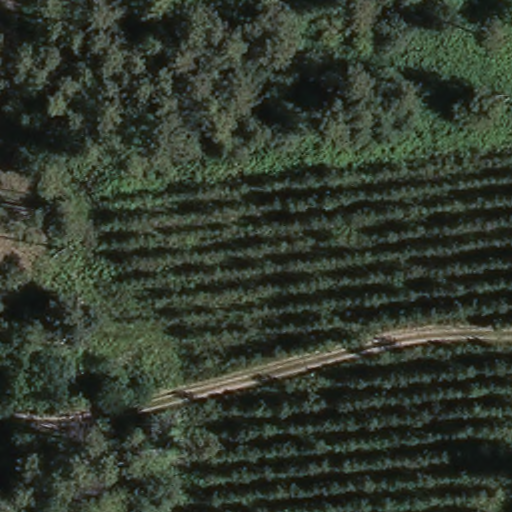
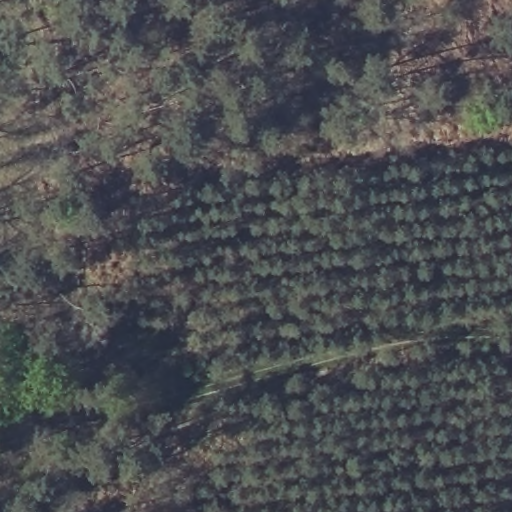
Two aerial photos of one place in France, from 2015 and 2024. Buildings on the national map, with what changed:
[]

